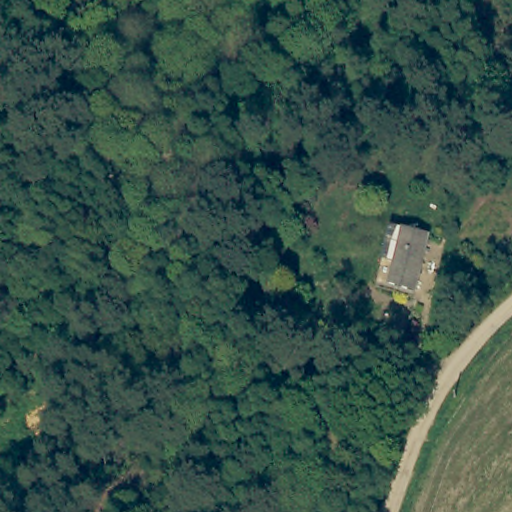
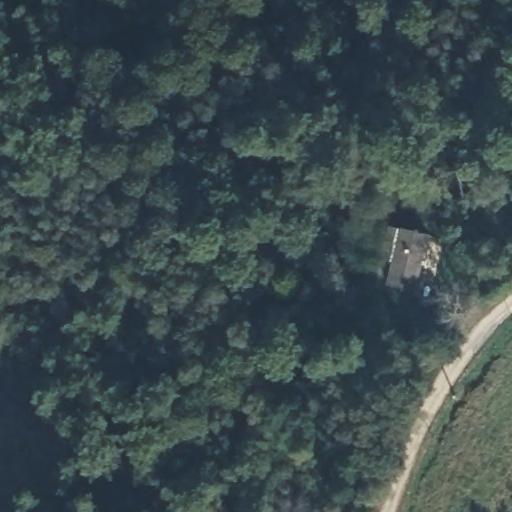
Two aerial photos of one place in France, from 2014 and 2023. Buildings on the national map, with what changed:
unchanged [(434,234),(424,284),(389,277),(397,227),(434,234)]
unchanged [(360,376),(380,407),(364,418),(343,387),(360,376)]

